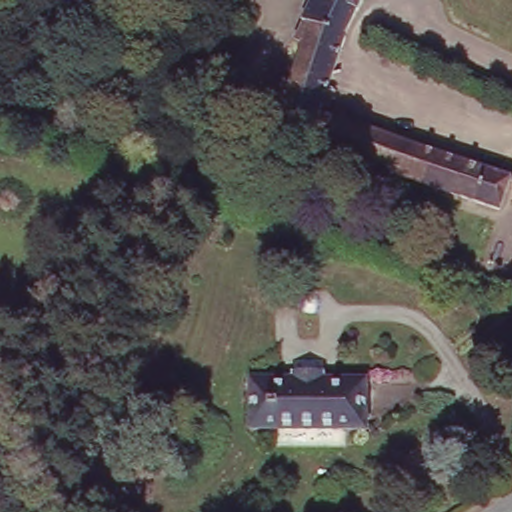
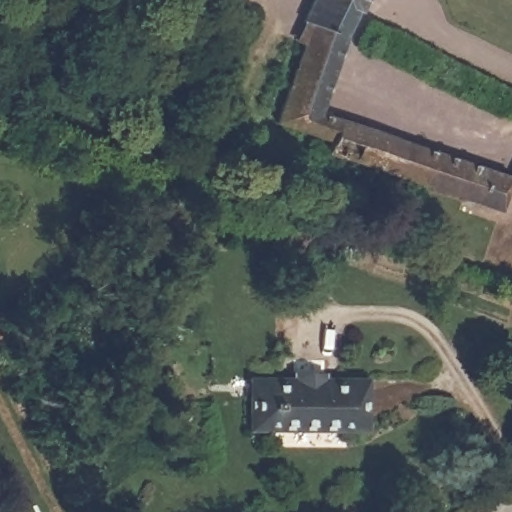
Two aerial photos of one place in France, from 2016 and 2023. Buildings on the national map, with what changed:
unchanged [(296,56),(300,46),(304,37),(296,33),(312,0),(362,0),(332,63),(296,56)]
unchanged [(332,63),(314,101),(323,106),(349,117),(367,125),(402,139),(452,157),(503,175),(489,210),(391,174),(361,162),(320,146),(324,134),(273,111),(296,56),(332,63)]
unchanged [(508,177),(512,170),(512,178),(508,177)]
unchanged [(288,380),(288,374),(321,373),(322,377),(361,377),(361,431),(310,431),(248,432),(247,380),(288,380)]

